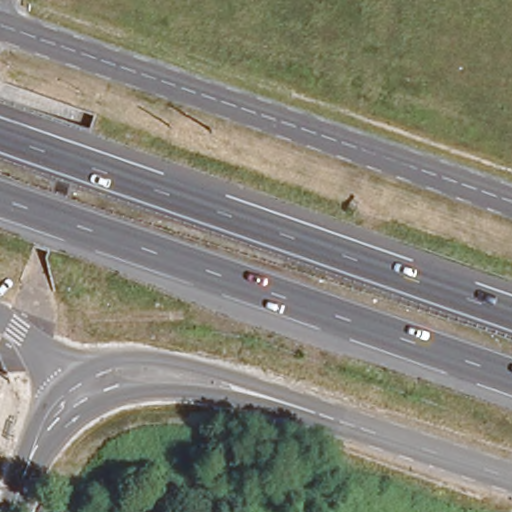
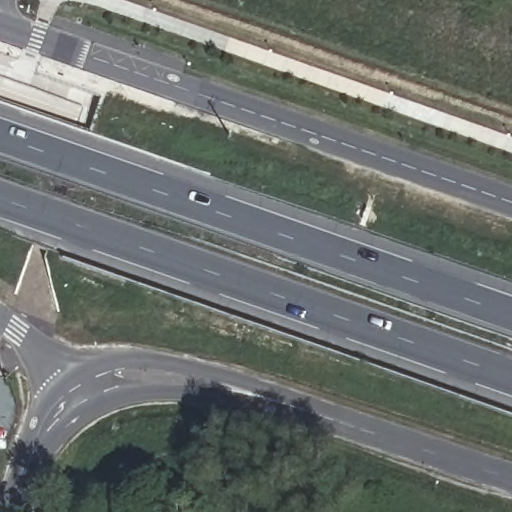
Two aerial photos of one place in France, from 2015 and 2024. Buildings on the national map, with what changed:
[]

